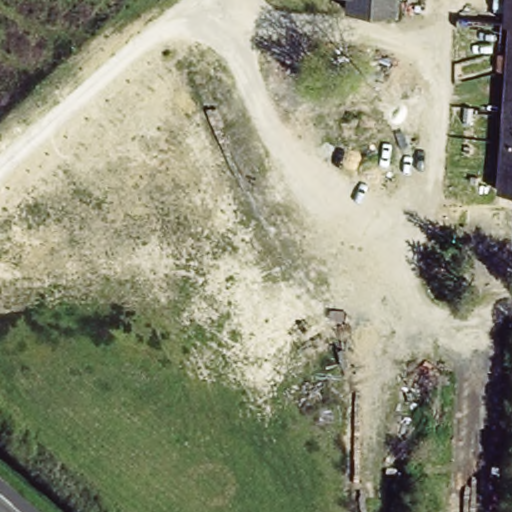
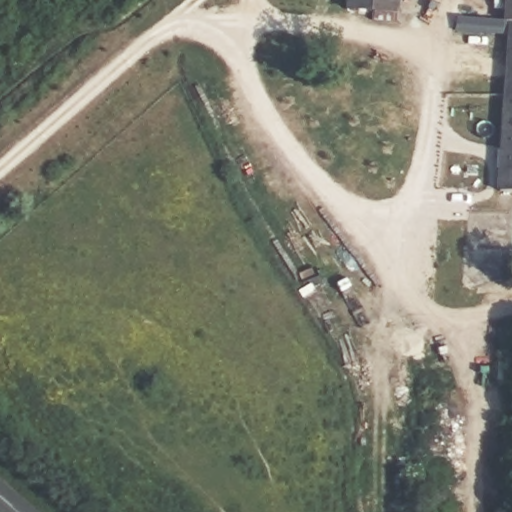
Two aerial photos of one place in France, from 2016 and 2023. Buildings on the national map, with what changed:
unchanged [(347,7),(348,0),(398,0),(398,11),(347,7)]
unchanged [(502,16),(505,0),(512,0),(512,16),(502,16)]
unchanged [(512,16),(512,190),(494,190),(502,16),(512,16)]

